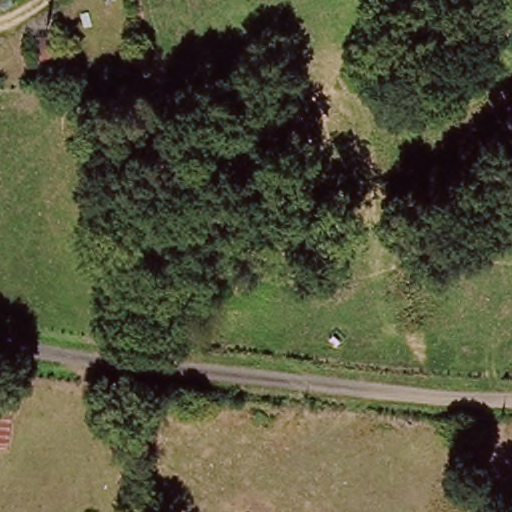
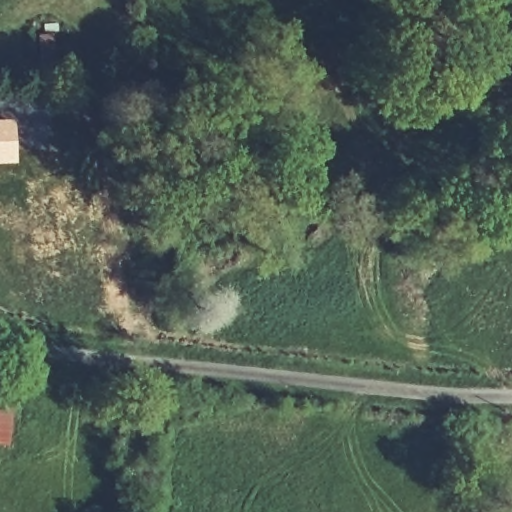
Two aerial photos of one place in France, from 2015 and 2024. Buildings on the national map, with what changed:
new [(17,164),(0,164),(0,119),(15,119),(17,164)]
unchanged [(0,374),(17,377),(6,447),(0,447),(0,374)]

